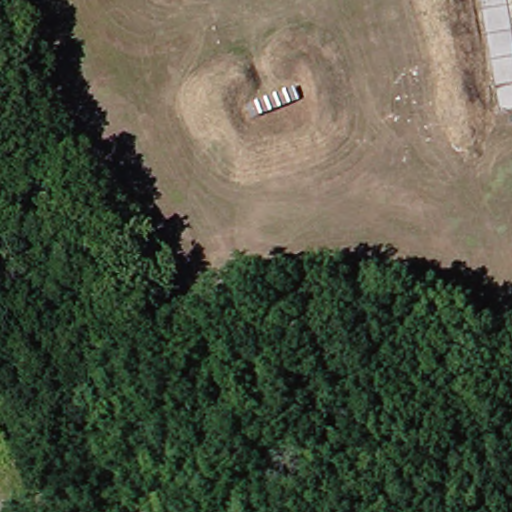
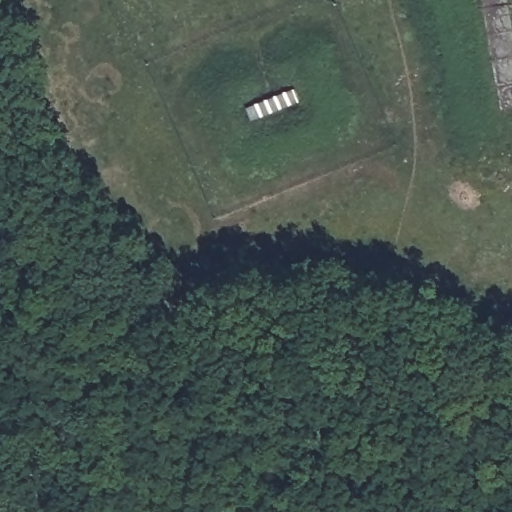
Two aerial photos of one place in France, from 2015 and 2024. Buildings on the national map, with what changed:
unchanged [(299,97),(302,108),(253,122),(249,112),(299,97)]

